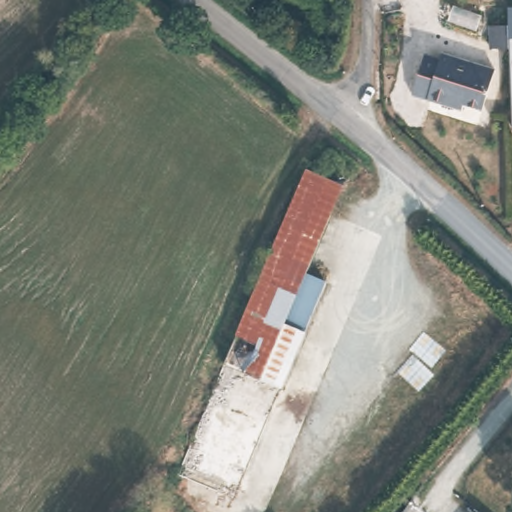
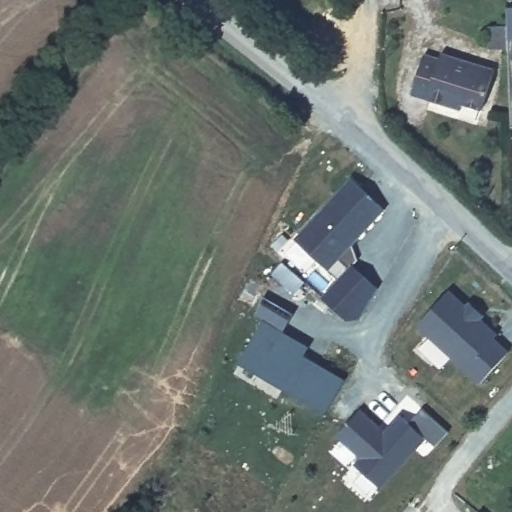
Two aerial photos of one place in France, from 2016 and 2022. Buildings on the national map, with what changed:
unchanged [(512,7),(512,105),(507,7),(512,7)]
demolished [(501,57),(497,31),(508,31),(508,55),(501,57)]
unchanged [(482,109),(450,97),(447,103),(412,91),(425,51),(439,55),(442,50),(496,67),(482,109)]
new [(361,322),(348,324),(322,300),(339,282),(295,242),(352,181),(385,212),(340,261),(350,271),(353,268),(378,292),(361,322)]
demolished [(323,236),(311,270),(331,279),(283,386),(227,361),(285,220),(323,236)]
new [(272,277),(283,265),(306,285),(296,296),(272,277)]
new [(445,353),(426,337),(417,328),(449,292),(466,308),(470,304),(484,317),(481,321),(497,336),(494,340),(508,354),(480,385),(463,371),(451,359),(445,353)]
new [(264,322),(310,350),(305,358),(346,383),(325,417),(282,391),(238,365),(244,356),(264,322)]
new [(360,411),(388,436),(392,432),(388,428),(399,416),(426,440),(381,491),(357,469),(363,463),(336,438),(360,411)]
unchanged [(479,512),(477,512),(477,511),(479,512)]

